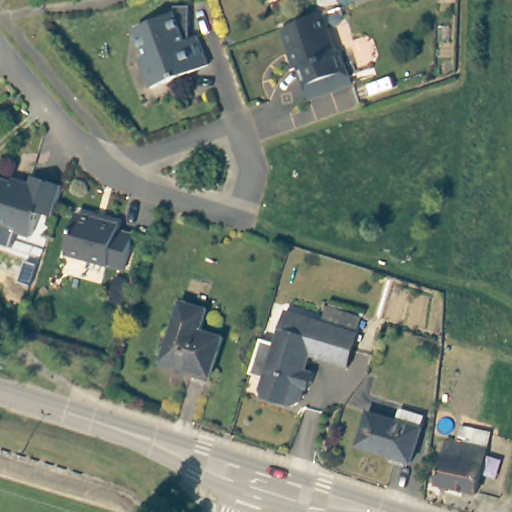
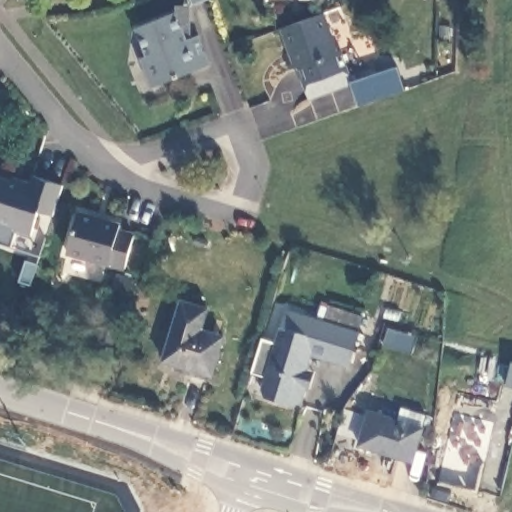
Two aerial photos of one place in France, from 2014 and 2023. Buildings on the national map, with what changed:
unchanged [(188,21),(187,26),(182,27),(186,38),(197,33),(209,63),(151,85),(140,56),(147,54),(135,25),(183,7),(188,21)]
unchanged [(339,46),(344,45),(356,78),(314,93),(297,45),(294,46),(286,22),(326,8),(339,46)]
new [(356,78),(397,65),(405,89),(359,105),(350,80),(356,78)]
unchanged [(29,184),(31,174),(62,182),(52,213),(38,210),(31,233),(14,229),(10,222),(0,219),(0,175),(29,184)]
unchanged [(118,226),(116,231),(130,236),(122,270),(63,255),(73,214),(118,226)]
unchanged [(209,310),(203,330),(225,337),(213,376),(165,362),(180,302),(209,310)]
unchanged [(281,312),(319,323),(324,308),(358,318),(355,334),(346,368),(305,356),(298,378),(303,378),(296,404),(288,408),(261,400),(257,392),(260,378),(245,375),(256,340),(272,345),(281,312)]
unchanged [(415,461),(361,444),(370,413),(400,422),(405,410),(419,413),(416,426),(424,429),(415,461)]
unchanged [(491,442),(483,487),(443,478),(453,433),(491,442)]

